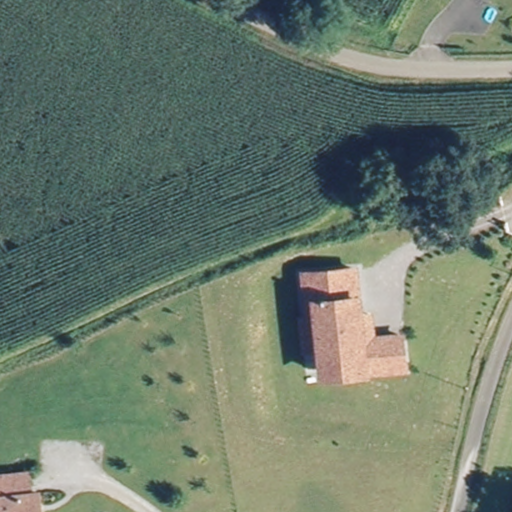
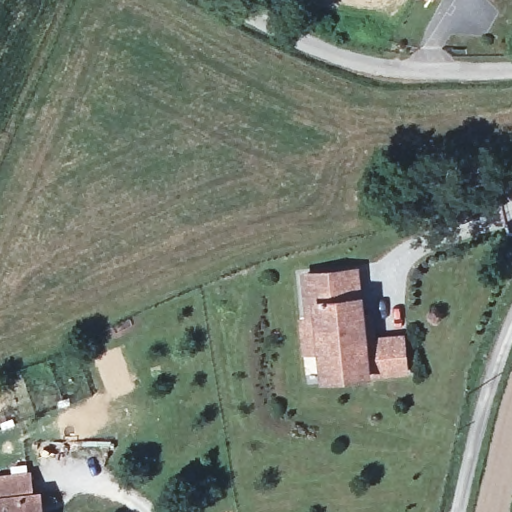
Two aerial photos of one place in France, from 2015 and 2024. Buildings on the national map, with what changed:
unchanged [(367,336),(406,332),(409,367),(368,371),(367,365),(329,370),(323,315),(313,316),(308,270),(360,265),(367,336)]
unchanged [(23,470),(25,487),(35,486),(38,512),(0,512),(0,473),(6,472),(23,470)]

